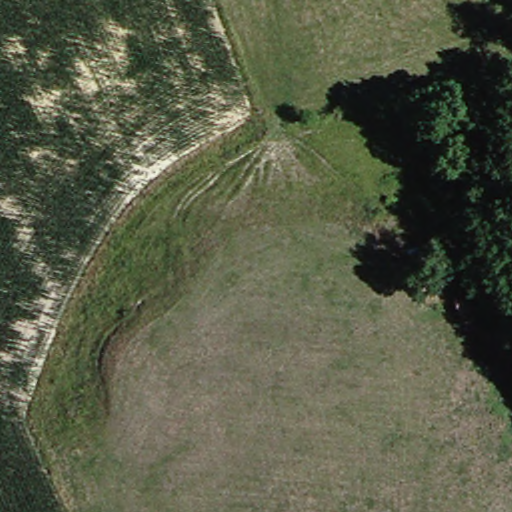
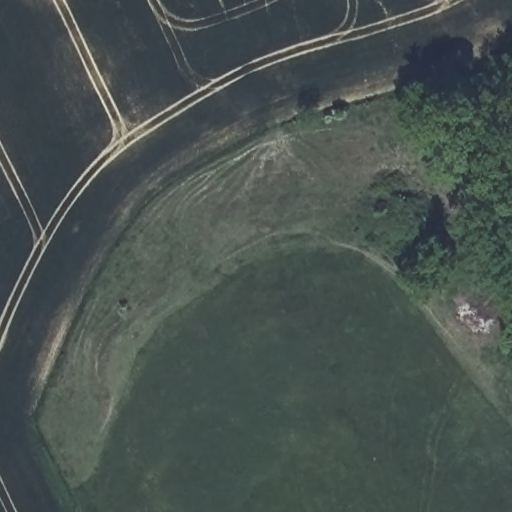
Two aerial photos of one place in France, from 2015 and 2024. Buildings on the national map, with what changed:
[]

